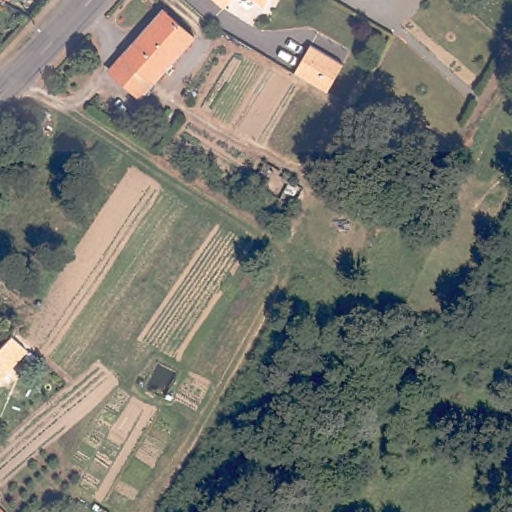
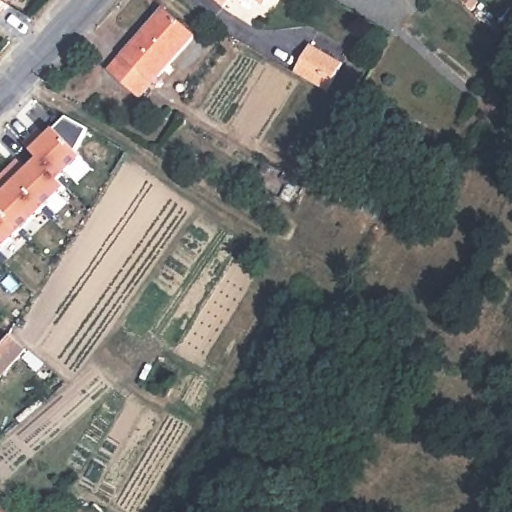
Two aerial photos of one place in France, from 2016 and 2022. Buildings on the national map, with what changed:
unchanged [(213,0),(232,0),(223,9),(213,0)]
unchanged [(263,7),(250,0),(267,0),(263,7)]
unchanged [(146,92),(115,65),(167,6),(199,34),(146,92)]
unchanged [(325,95),(293,76),(309,50),(341,67),(325,95)]
new [(3,195),(0,191),(0,179),(13,167),(19,161),(28,171),(39,161),(25,146),(35,136),(40,131),(47,138),(67,119),(89,131),(77,154),(83,160),(60,182),(67,190),(0,254),(0,197),(3,195)]
unchanged [(429,154),(421,150),(429,134),(438,139),(429,154)]
unchanged [(354,197),(325,185),(331,171),(360,184),(354,197)]
new [(11,335),(27,349),(0,379),(0,346),(11,335)]
unchanged [(9,512),(0,512),(0,502),(9,512)]

